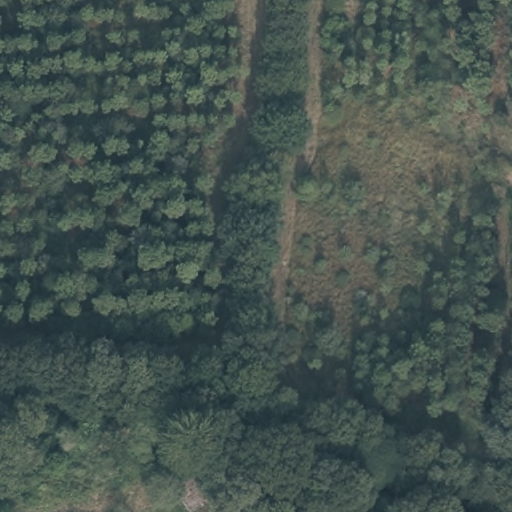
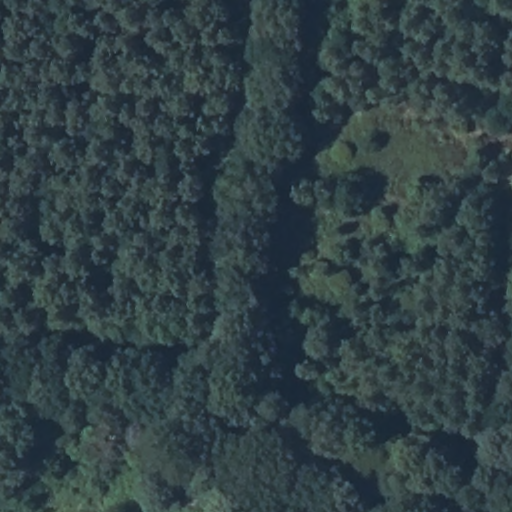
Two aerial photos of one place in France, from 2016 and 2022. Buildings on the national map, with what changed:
unchanged [(189,460),(222,512),(202,512),(200,509),(194,512),(173,512),(154,481),(189,460)]

